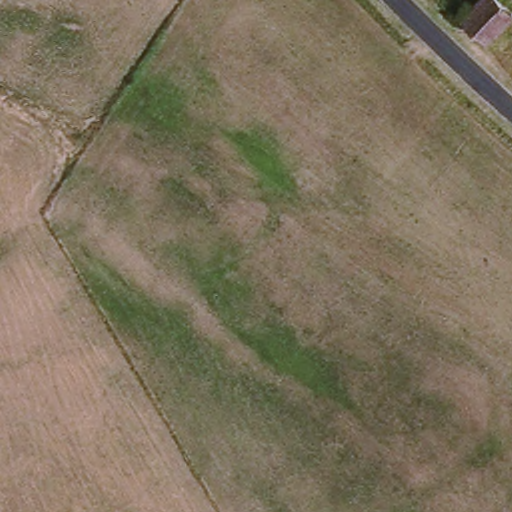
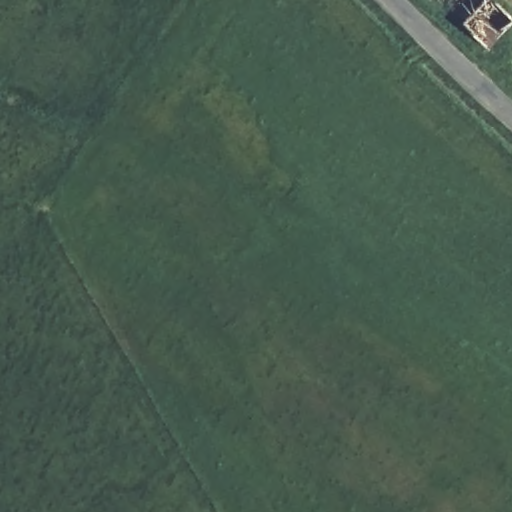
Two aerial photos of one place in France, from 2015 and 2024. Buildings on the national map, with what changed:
unchanged [(483,46),(462,24),(487,0),(494,0),(512,19),(483,46)]

